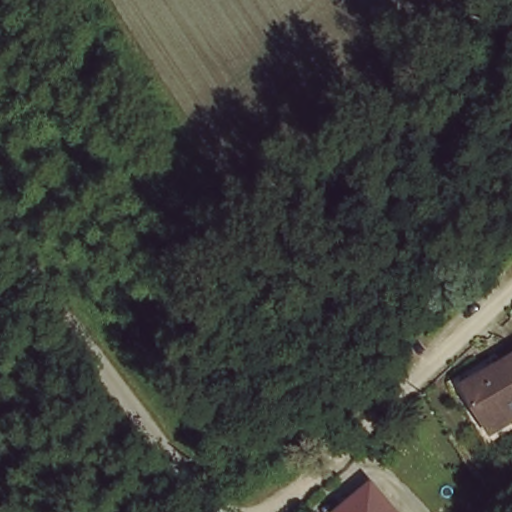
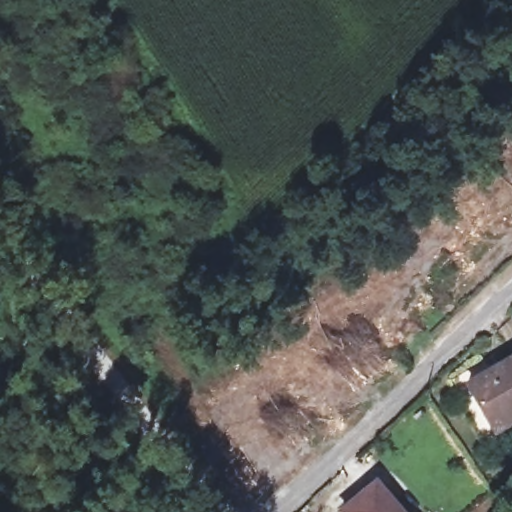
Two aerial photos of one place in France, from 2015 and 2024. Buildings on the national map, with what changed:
unchanged [(486,414),(465,376),(512,350),(512,414),(492,425),(486,414)]
unchanged [(344,512),(340,507),(370,481),(398,512),(344,512)]

